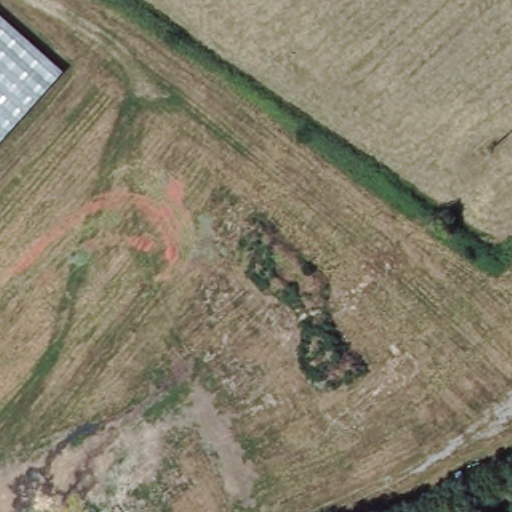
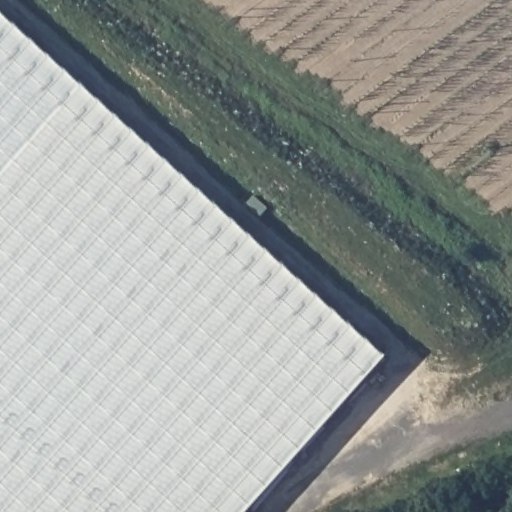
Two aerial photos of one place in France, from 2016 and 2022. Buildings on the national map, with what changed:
unchanged [(0,140),(0,14),(63,71),(0,140)]
new [(63,71),(387,355),(246,512),(0,512),(0,140),(63,71)]

